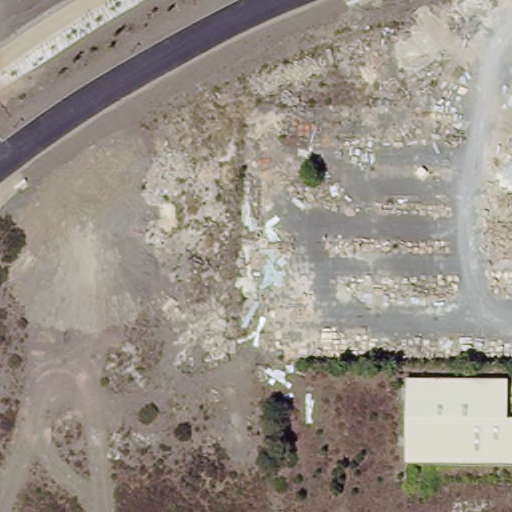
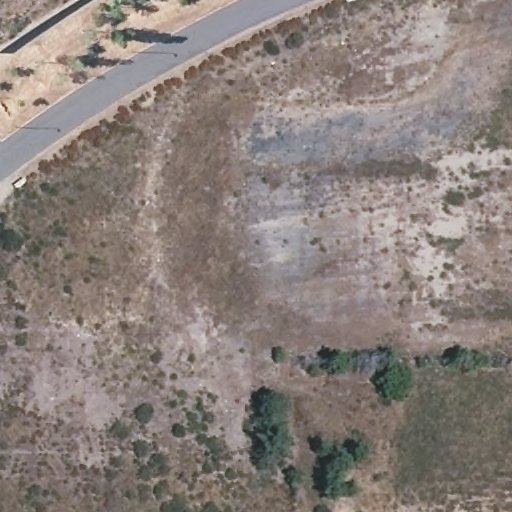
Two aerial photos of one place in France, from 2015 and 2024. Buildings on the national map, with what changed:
demolished [(506,380),(506,418),(512,419),(512,464),(405,463),(405,405),(380,405),(380,378),(506,380)]

